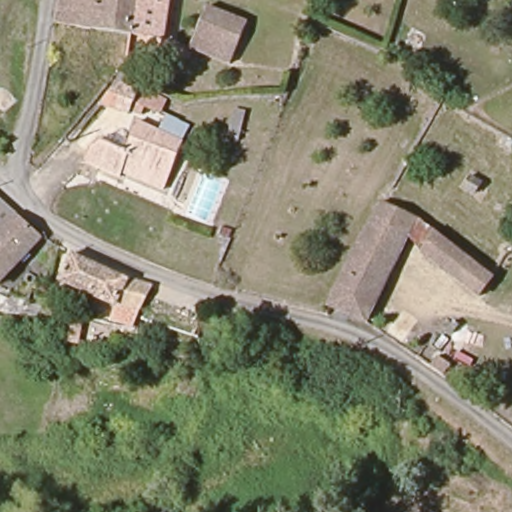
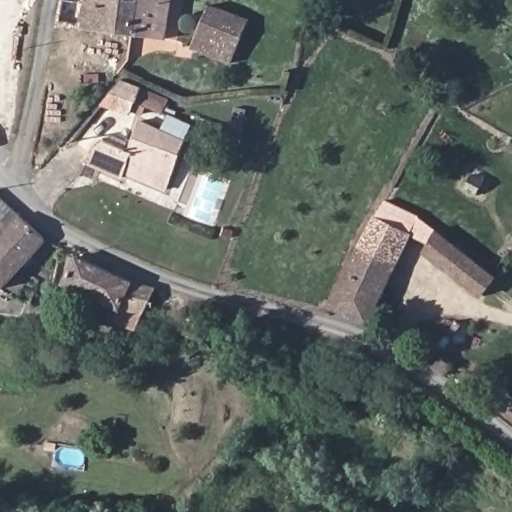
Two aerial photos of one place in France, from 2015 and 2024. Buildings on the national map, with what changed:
unchanged [(61,23),(66,0),(138,0),(131,32),(61,23)]
unchanged [(138,0),(165,0),(159,37),(131,32),(138,0)]
unchanged [(193,38),(204,6),(244,21),(234,53),(193,38)]
unchanged [(143,115),(107,102),(112,85),(117,80),(151,92),(143,115)]
unchanged [(163,188),(125,171),(120,179),(84,165),(97,135),(126,146),(137,122),(185,142),(163,188)]
unchanged [(482,179),(475,191),(463,184),(469,172),(482,179)]
unchanged [(492,265),(477,286),(404,236),(367,310),(333,295),(342,276),(386,190),(492,265)]
unchanged [(0,199),(17,213),(48,237),(3,288),(0,286),(0,199)]
unchanged [(146,308),(121,307),(64,285),(74,257),(129,280),(153,288),(146,308)]
unchanged [(430,366),(439,355),(451,365),(444,376),(430,366)]

